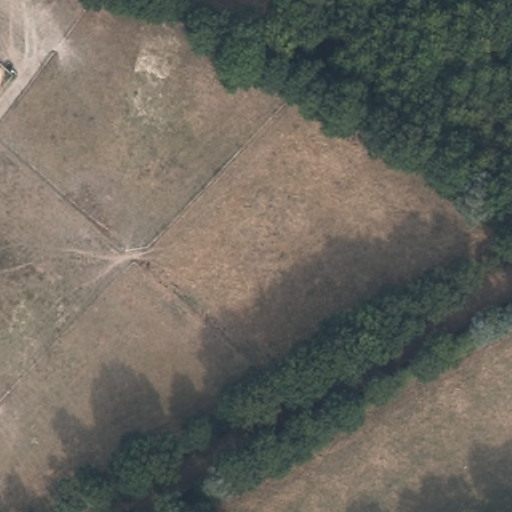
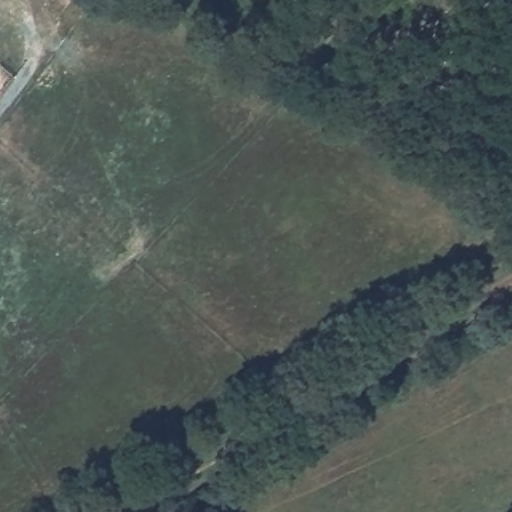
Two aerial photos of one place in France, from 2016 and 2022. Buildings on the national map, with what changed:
[]

